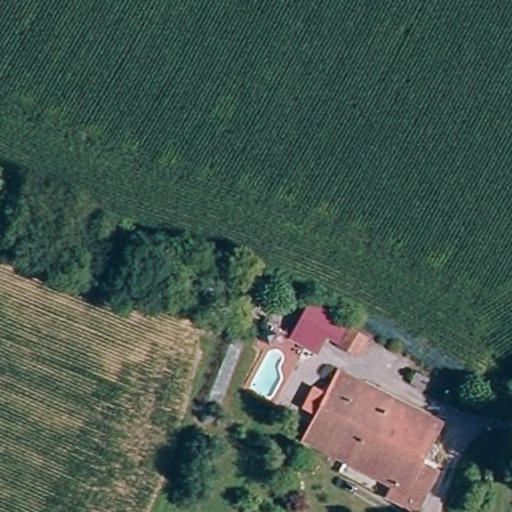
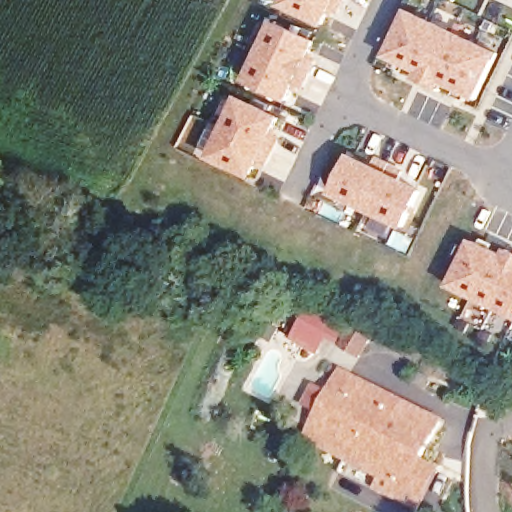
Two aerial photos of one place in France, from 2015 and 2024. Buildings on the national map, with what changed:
new [(326,29),(281,7),(284,0),(340,0),(326,29)]
new [(478,101),(386,59),(409,11),(502,55),(478,101)]
new [(245,83),(275,22),(320,44),(291,105),(245,83)]
new [(284,117),(255,179),(209,159),(238,97),(284,117)]
new [(374,165),(377,158),(407,172),(403,180),(423,190),(405,227),(332,195),(351,154),(374,165)]
new [(504,256),(507,249),(512,251),(512,316),(449,287),(472,241),(504,256)]
new [(326,316),(337,321),(330,336),(319,331),(310,350),(285,338),(300,303),(326,316)]
unchanged [(436,416),(421,453),(367,429),(364,436),(318,417),(337,370),(436,416)]
unchanged [(364,436),(367,429),(421,453),(416,462),(435,470),(426,492),(309,442),(318,417),(364,436)]

